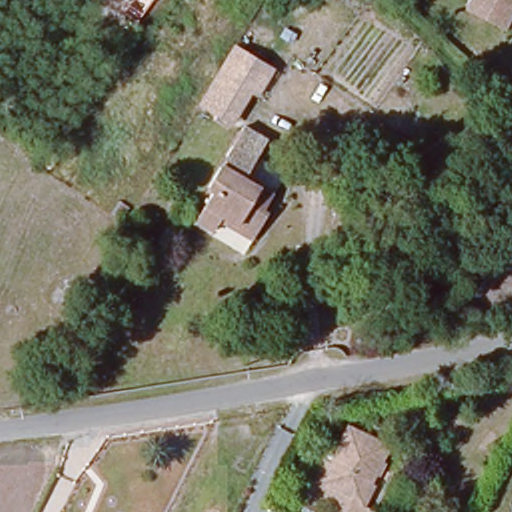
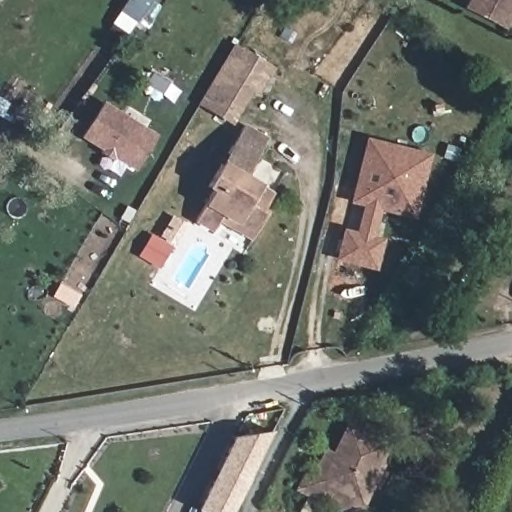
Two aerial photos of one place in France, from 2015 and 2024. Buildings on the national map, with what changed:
new [(126,0),(149,0),(139,12),(133,20),(119,9),(125,1),(126,0)]
unchanged [(470,3),(472,0),(512,0),(512,11),(507,21),(470,3)]
unchanged [(273,76),(257,102),(249,97),(219,78),(236,51),(273,76)]
unchanged [(249,97),(234,122),(229,129),(200,110),(219,78),(249,97)]
new [(135,170),(115,158),(112,161),(101,153),(104,150),(82,137),(103,102),(159,134),(135,170)]
unchanged [(226,211),(221,219),(211,232),(192,221),(211,190),(202,183),(238,125),(277,149),(257,183),(270,192),(264,202),(275,210),(260,234),(226,211)]
new [(343,228),(355,231),(362,206),(349,203),(365,137),(432,153),(415,219),(381,210),(375,236),(384,238),(376,271),(335,260),(343,228)]
unchanged [(339,512),(295,485),(305,467),(313,472),(326,448),(335,453),(350,429),(387,455),(360,499),(375,509),(374,512),(339,512)]
new [(199,512),(197,511),(235,437),(276,431),(234,512),(199,512)]

